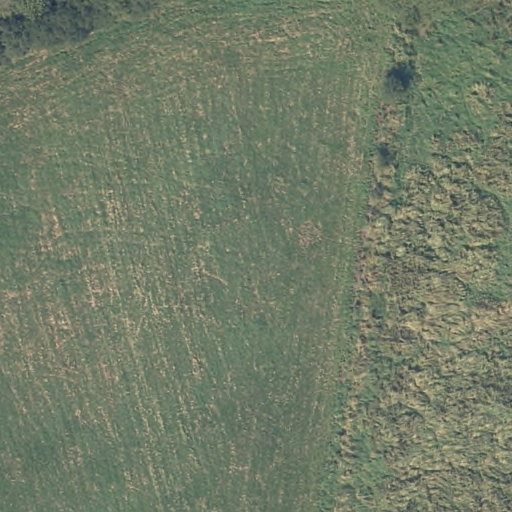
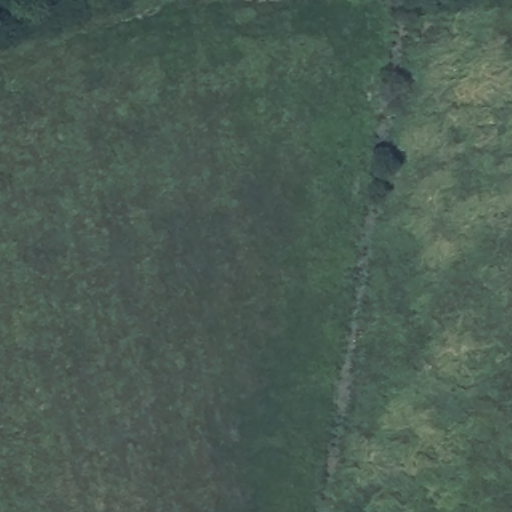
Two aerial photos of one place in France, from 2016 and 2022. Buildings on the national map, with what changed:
[]

